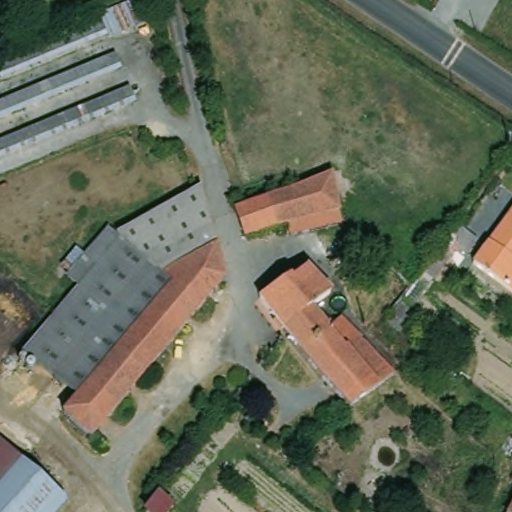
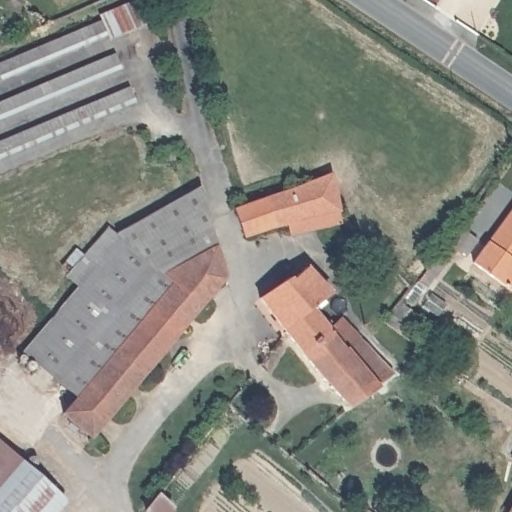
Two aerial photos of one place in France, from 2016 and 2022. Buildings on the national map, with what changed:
unchanged [(107,10),(134,0),(149,0),(154,17),(116,34),(116,31),(0,80),(0,60),(106,16),(107,10)]
unchanged [(125,65),(0,117),(0,97),(119,49),(125,65)]
unchanged [(136,101),(0,157),(0,137),(129,84),(136,101)]
unchanged [(340,211),(253,243),(249,230),(249,229),(246,217),(245,216),(245,213),(243,206),(333,170),(343,210),(340,211)]
unchanged [(64,276),(68,272),(59,265),(76,246),(83,254),(108,225),(118,232),(201,186),(217,246),(226,277),(222,285),(90,442),(61,414),(74,398),(22,352),(76,287),(64,276)]
unchanged [(479,256),(512,211),(512,280),(479,256)]
unchanged [(333,324),(329,328),(314,342),(310,347),(296,331),(287,320),(279,311),(278,310),(272,301),(287,287),(307,267),(308,266),(310,264),(333,288),(325,296),(317,304),(317,305),(318,305),(319,306),(321,309),(335,322),(333,324)]
unchanged [(314,342),(329,328),(333,324),(335,322),(338,320),(350,308),(356,315),(360,320),(366,327),(386,349),(386,350),(394,358),(398,365),(397,365),(394,368),(390,372),(356,405),(353,401),(351,400),(350,399),(330,373),(326,367),(319,358),(310,347),(314,342)]
unchanged [(31,471),(0,501),(0,440),(1,438),(31,471)]
unchanged [(508,457),(504,455),(506,451),(512,441),(512,459),(508,457)]
unchanged [(68,510),(67,512),(0,512),(0,501),(31,471),(68,510)]
unchanged [(177,508),(183,512),(174,512),(177,508)]

